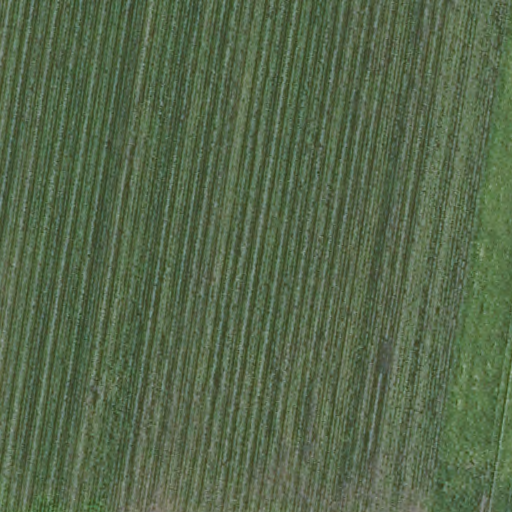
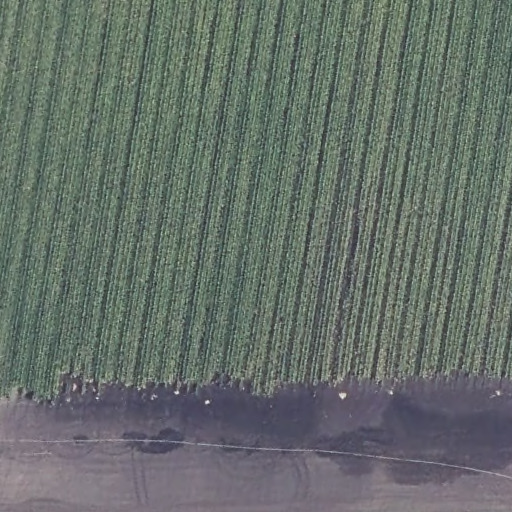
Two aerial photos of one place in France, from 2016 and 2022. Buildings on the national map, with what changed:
[]

